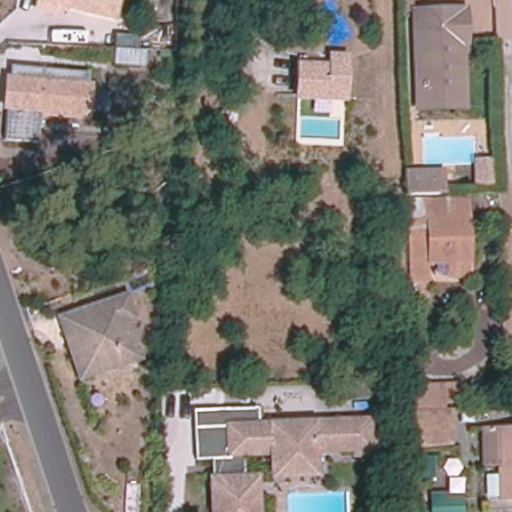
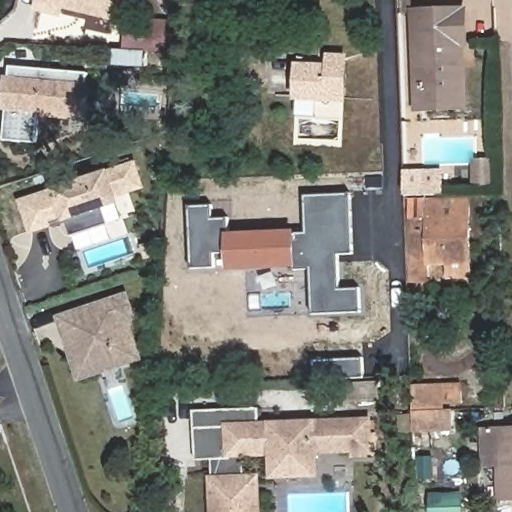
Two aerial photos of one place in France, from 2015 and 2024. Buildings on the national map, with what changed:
unchanged [(117,20),(66,9),(62,20),(35,14),(38,0),(122,0),(117,20)]
unchanged [(419,108),(415,14),(465,12),(465,43),(460,43),(462,107),(419,108)]
new [(146,65),(115,64),(115,50),(125,50),(127,22),(175,21),(176,50),(146,50),(146,65)]
unchanged [(330,57),(346,58),(345,101),(297,99),(299,66),(330,67),(330,57)]
unchanged [(87,82),(92,82),(90,120),(40,116),(37,142),(6,140),(9,111),(0,110),(3,75),(12,75),(13,65),(88,70),(87,82)]
new [(120,197),(121,204),(119,205),(123,219),(108,225),(112,237),(112,239),(77,250),(72,236),(66,224),(54,229),(53,226),(31,234),(20,200),(55,189),(110,169),(138,160),(147,188),(120,197)]
unchanged [(404,171),(445,170),(445,195),(425,196),(405,196),(404,171)]
new [(212,205),(213,219),(229,218),(230,235),(305,232),(304,195),(350,193),(353,254),(338,255),(340,289),(360,288),(361,312),(312,315),(310,270),(293,270),(293,265),(230,267),(230,253),(215,253),(216,268),(192,269),(189,206),(212,205)]
unchanged [(408,284),(407,266),(405,219),(425,218),(425,196),(445,195),(452,195),(452,200),(468,200),(470,266),(470,280),(447,280),(447,266),(429,266),(430,283),(408,284)]
unchanged [(139,321),(132,324),(145,360),(77,383),(59,318),(130,293),(139,321)]
new [(363,358),(365,380),(315,382),(313,360),(363,358)]
unchanged [(462,384),(463,404),(445,405),(443,385),(462,384)]
unchanged [(371,437),(372,455),(354,455),(350,450),(311,451),(312,465),(268,466),(268,453),(236,455),(237,480),(252,479),(253,512),(209,512),(208,480),(216,480),(215,460),(191,461),(190,411),(255,409),(255,426),(366,422),(366,437),(371,437)]
unchanged [(453,443),(415,445),(414,411),(451,410),(453,443)]
unchanged [(500,465),(484,466),(483,431),(512,430),(512,500),(500,500),(500,465)]
unchanged [(462,512),(432,512),(432,495),(462,494),(462,512)]

